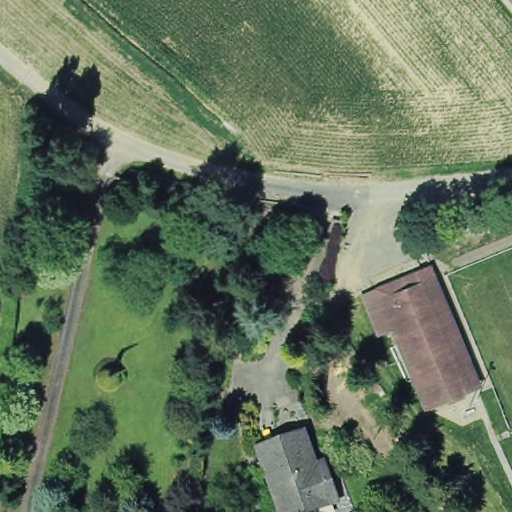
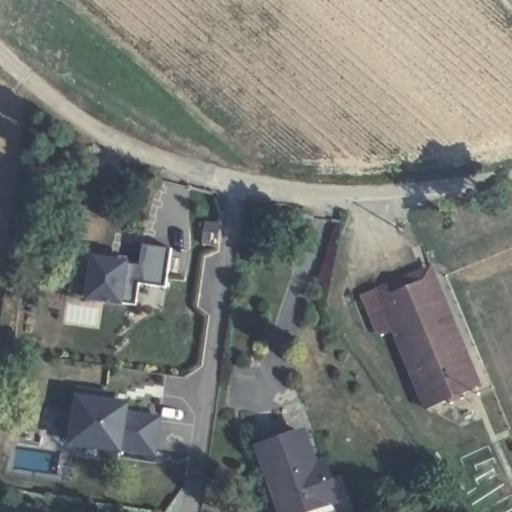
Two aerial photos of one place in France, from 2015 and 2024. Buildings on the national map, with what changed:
new [(171,291),(161,289),(158,309),(74,296),(82,249),(143,260),(147,240),(180,245),(171,291)]
unchanged [(475,391),(466,395),(420,287),(430,283),(475,391)]
unchanged [(419,414),(374,305),(420,287),(466,395),(419,414)]
new [(105,403),(128,406),(128,411),(160,416),(153,459),(121,456),(121,449),(102,446),(102,443),(65,438),(69,413),(75,413),(79,387),(107,390),(105,403)]
unchanged [(277,512),(256,458),(300,441),(290,512),(277,512)]
unchanged [(320,471),(325,486),(333,508),(323,512),(290,512),(300,441),(312,473),(320,471)]

